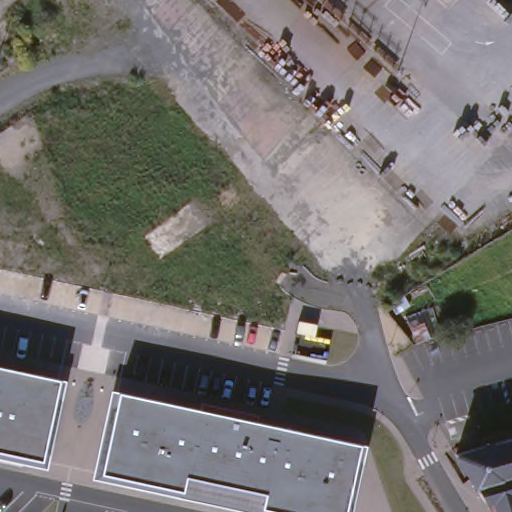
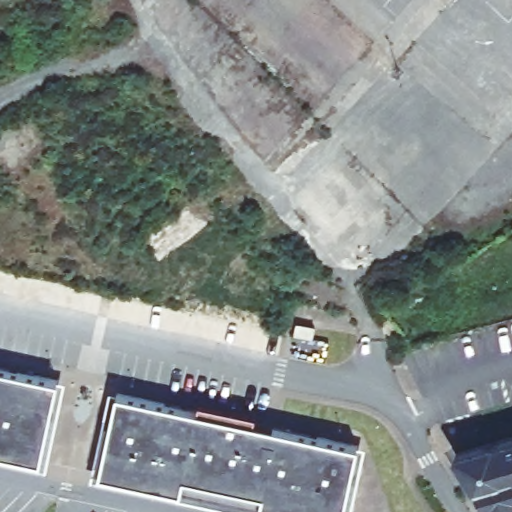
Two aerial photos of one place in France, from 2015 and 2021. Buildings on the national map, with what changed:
unchanged [(408,307),(395,314),(388,305),(402,296),(408,307)]
unchanged [(0,459),(0,369),(59,382),(66,382),(46,469),(0,459)]
unchanged [(357,446),(364,446),(350,512),(246,512),(93,478),(111,392),(117,394),(357,446)]
unchanged [(489,512),(487,504),(482,505),(456,461),(454,457),(512,441),(512,512),(489,512)]

